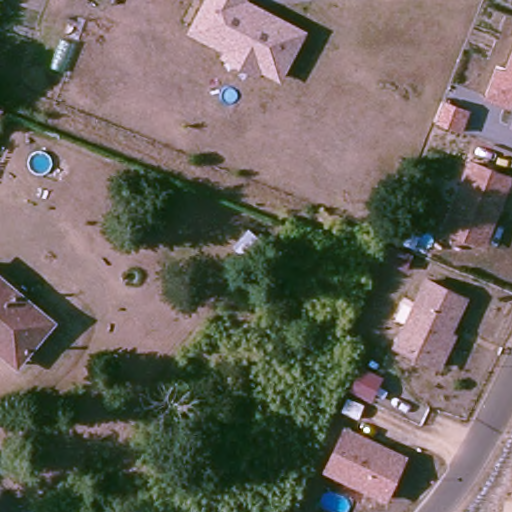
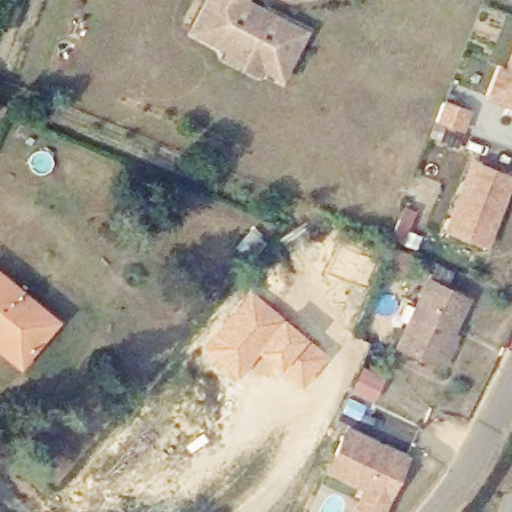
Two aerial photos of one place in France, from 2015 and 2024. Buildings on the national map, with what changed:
unchanged [(308,29),(281,80),(263,71),(258,77),(219,56),(222,50),(188,31),(204,0),(255,0),(308,29)]
unchanged [(485,97),(497,64),(507,68),(512,54),(512,102),(510,107),(485,97)]
unchanged [(443,90),(467,99),(460,119),(435,109),(443,90)]
unchanged [(512,180),(485,246),(441,228),(469,157),(512,173),(512,180)]
new [(252,225),(267,241),(247,260),(232,245),(252,225)]
unchanged [(388,246),(402,250),(398,263),(384,258),(388,246)]
unchanged [(25,353),(1,331),(0,332),(0,269),(32,297),(28,301),(51,322),(25,353)]
unchanged [(450,349),(444,365),(399,350),(423,281),(463,295),(455,317),(451,331),(445,347),(450,349)]
new [(251,288),(328,354),(298,387),(274,367),(255,385),(251,381),(243,385),(201,347),(251,288)]
new [(363,359),(381,367),(370,390),(352,381),(363,359)]
unchanged [(409,453),(386,500),(324,470),(346,425),(409,453)]

